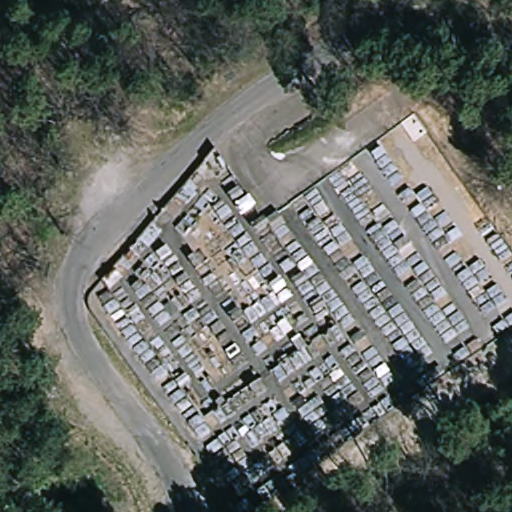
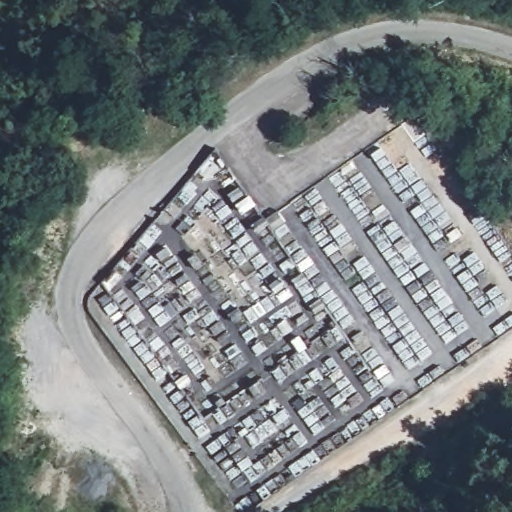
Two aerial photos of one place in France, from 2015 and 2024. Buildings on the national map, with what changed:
unchanged [(227,174),(212,185),(200,168),(210,155),(213,154),(227,174)]

